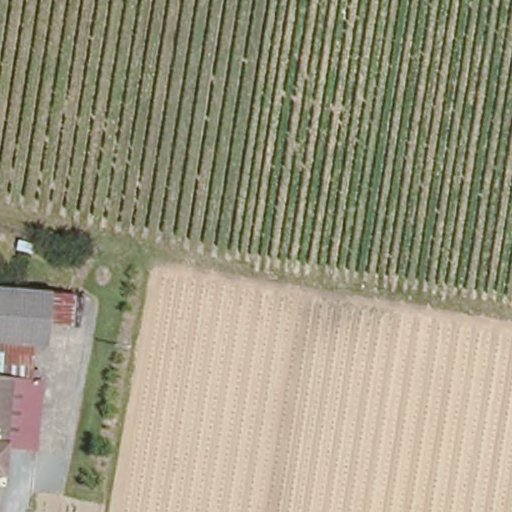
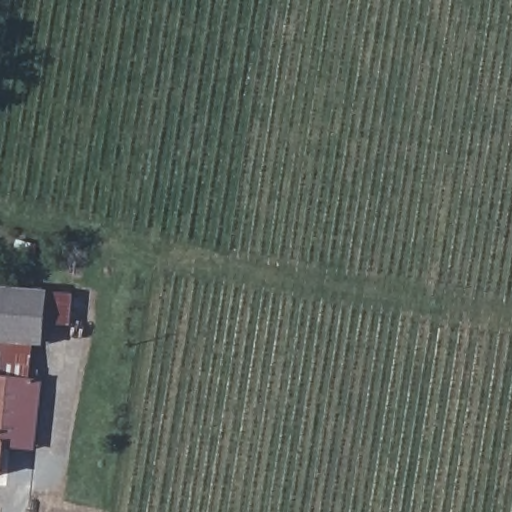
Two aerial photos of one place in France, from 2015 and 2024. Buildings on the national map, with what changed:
unchanged [(0,475),(0,287),(50,293),(44,347),(33,347),(29,381),(40,382),(35,435),(33,450),(5,446),(0,475)]
unchanged [(51,293),(70,296),(67,322),(49,320),(51,293)]

